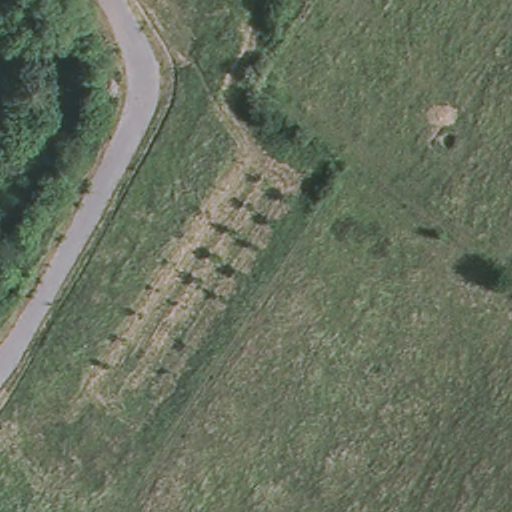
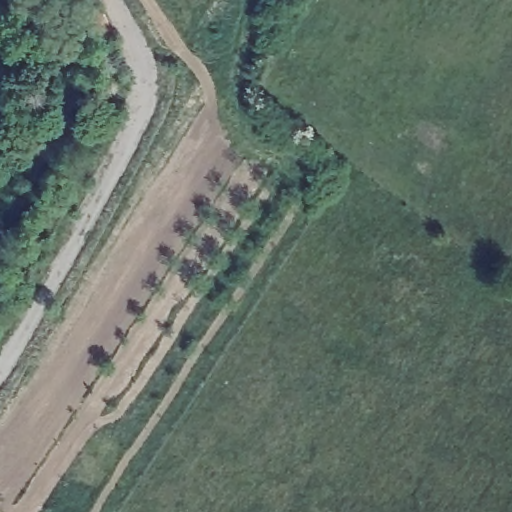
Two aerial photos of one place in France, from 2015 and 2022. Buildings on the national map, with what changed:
[]

